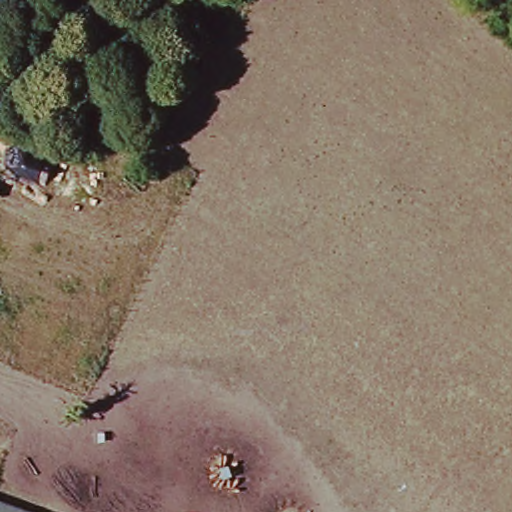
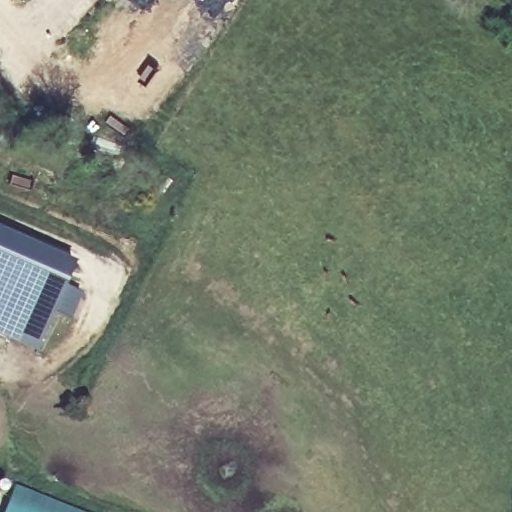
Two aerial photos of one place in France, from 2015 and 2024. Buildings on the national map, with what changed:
new [(65,286),(81,294),(70,320),(53,313),(37,352),(0,336),(0,233),(73,265),(65,286)]
new [(11,499),(1,496),(0,495),(0,484),(1,484),(4,484),(15,489),(15,487),(79,512),(6,512),(11,499)]
demolished [(0,504),(25,512),(0,512),(0,504)]

